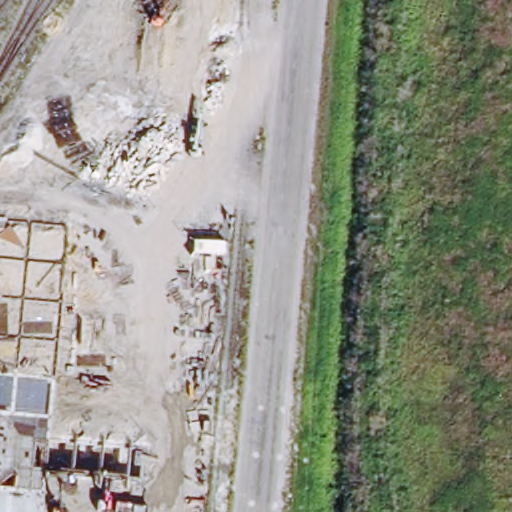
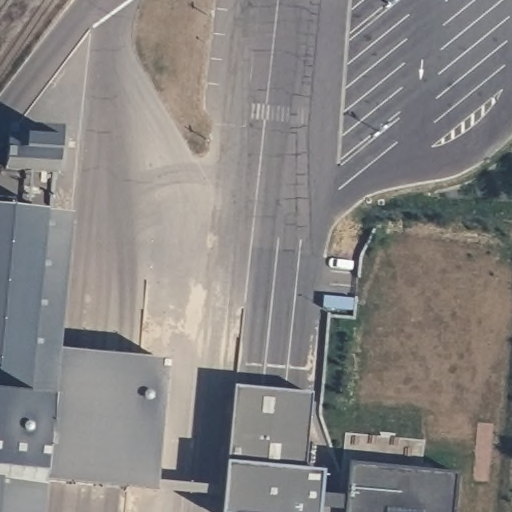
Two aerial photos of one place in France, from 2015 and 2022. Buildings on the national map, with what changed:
demolished [(86,158),(104,157),(104,180),(86,179),(86,158)]
new [(10,212),(10,220),(46,223),(70,224),(57,355),(50,414),(26,413),(0,411),(0,212),(10,212)]
new [(170,364),(157,493),(44,483),(50,414),(57,355),(170,364)]
new [(309,399),(301,474),(331,477),(327,512),(223,512),(234,392),(309,399)]
new [(0,488),(0,411),(26,413),(50,414),(44,483),(44,491),(0,488)]
new [(455,476),(452,512),(347,512),(352,470),(455,476)]
new [(44,491),(42,512),(0,512),(0,488),(44,491)]

